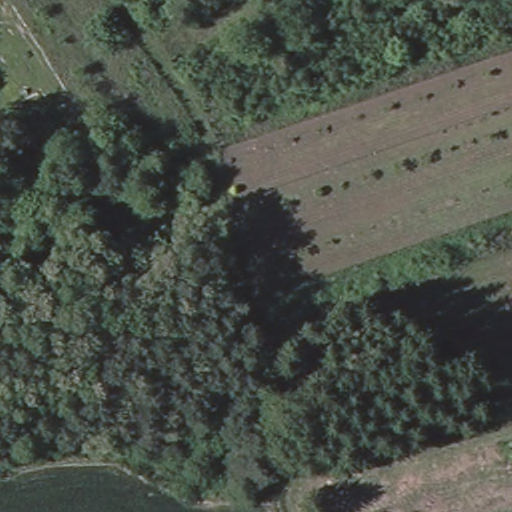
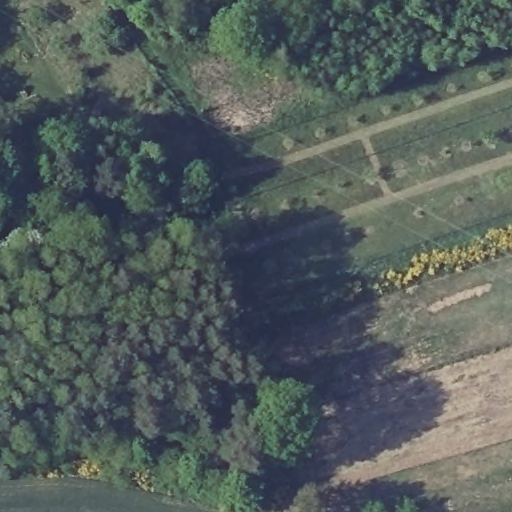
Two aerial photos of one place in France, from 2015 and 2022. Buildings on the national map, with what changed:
[]

